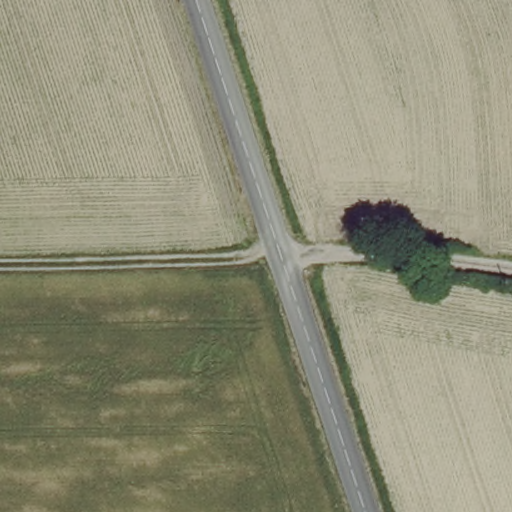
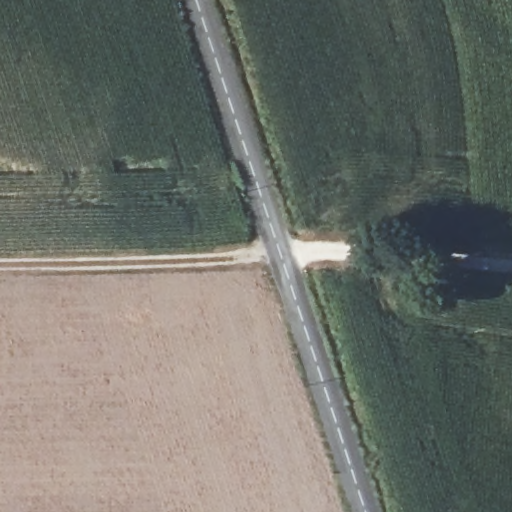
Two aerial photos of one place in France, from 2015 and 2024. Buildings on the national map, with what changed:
[]

